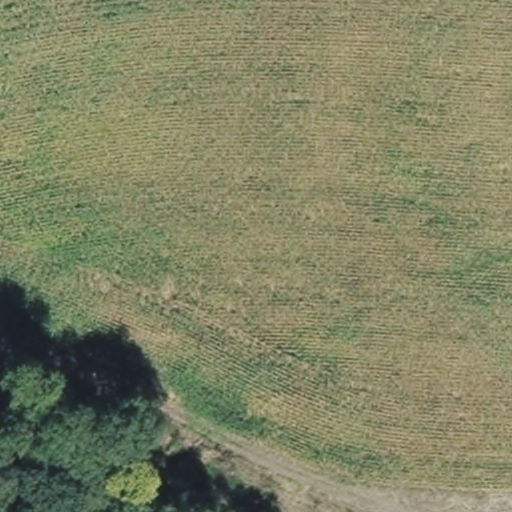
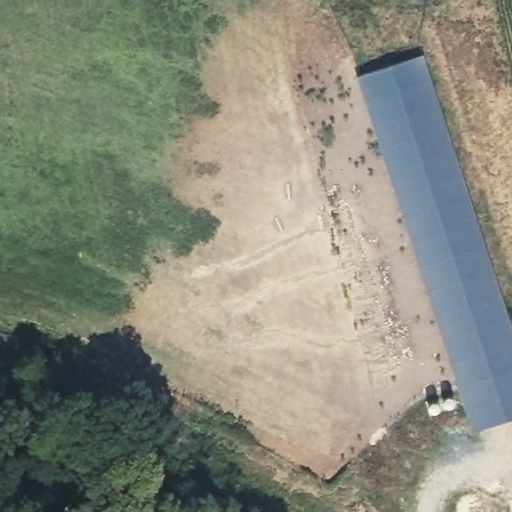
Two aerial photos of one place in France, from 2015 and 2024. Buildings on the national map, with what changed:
new [(419,55),(512,342),(512,395),(469,408),(361,75),(419,55)]
new [(512,395),(512,419),(477,430),(469,408),(512,395)]

